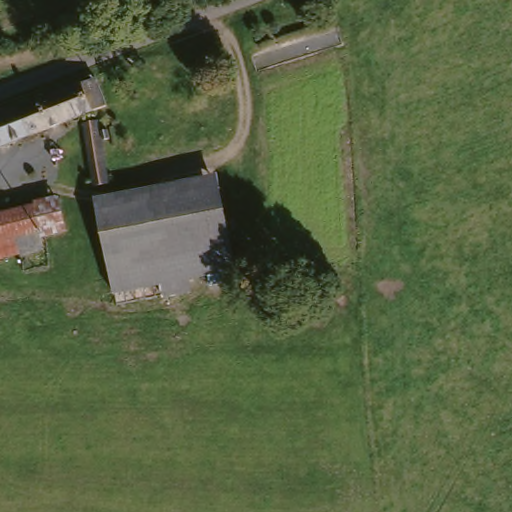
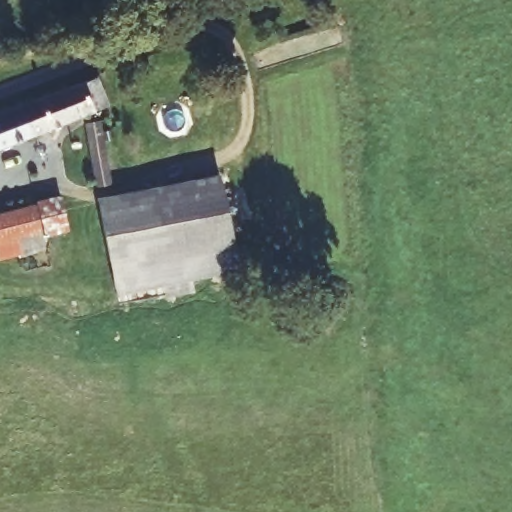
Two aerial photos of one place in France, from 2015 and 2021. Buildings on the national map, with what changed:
unchanged [(89,89),(98,110),(34,136),(22,106),(85,81),(89,89)]
unchanged [(34,136),(0,150),(0,116),(22,106),(34,136)]
unchanged [(116,184),(100,188),(86,123),(101,120),(116,184)]
unchanged [(241,267),(117,294),(107,224),(102,195),(118,193),(223,176),(241,267)]
unchanged [(0,215),(51,202),(59,230),(14,242),(8,243),(0,215)]

